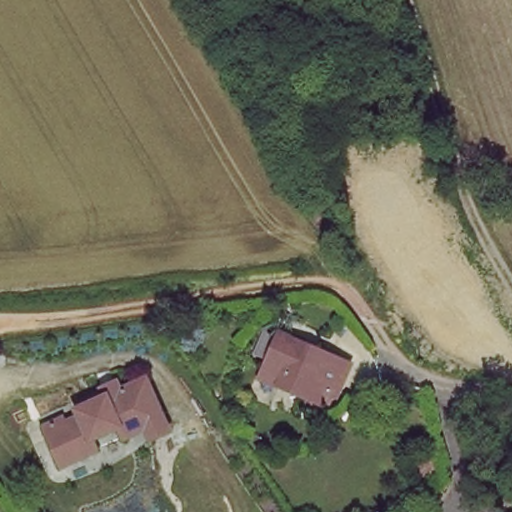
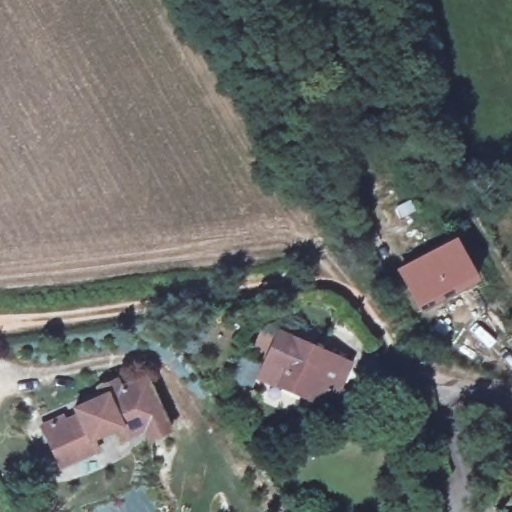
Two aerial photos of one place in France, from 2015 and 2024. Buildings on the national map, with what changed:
new [(455,236),(477,277),(416,309),(395,269),(455,236)]
unchanged [(272,361),(285,331),(337,352),(333,358),(352,366),(342,394),(332,390),(327,402),(310,395),(265,377),(272,361)]
unchanged [(52,413),(55,417),(71,410),(67,403),(96,390),(92,382),(107,375),(110,383),(135,371),(155,411),(159,422),(141,431),(136,420),(115,430),(110,420),(82,432),(87,443),(69,452),(52,460),(35,421),(52,413)]

